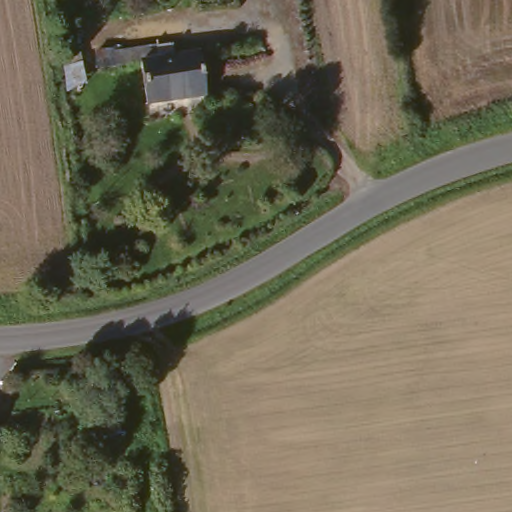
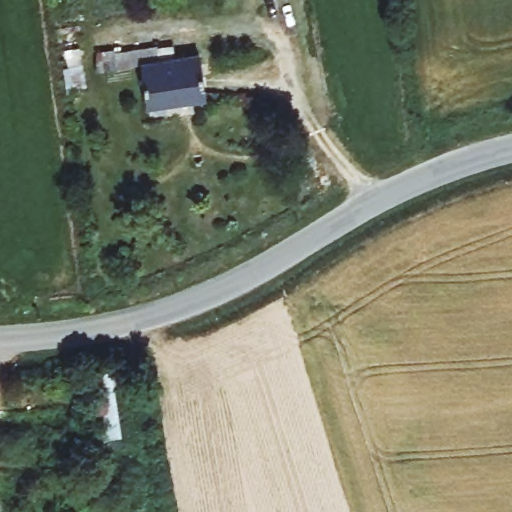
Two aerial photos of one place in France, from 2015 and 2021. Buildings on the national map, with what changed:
unchanged [(143,55),(163,52),(161,40),(174,38),(176,51),(200,48),(206,90),(149,98),(143,55)]
unchanged [(80,45),(84,62),(71,64),(68,48),(80,45)]

